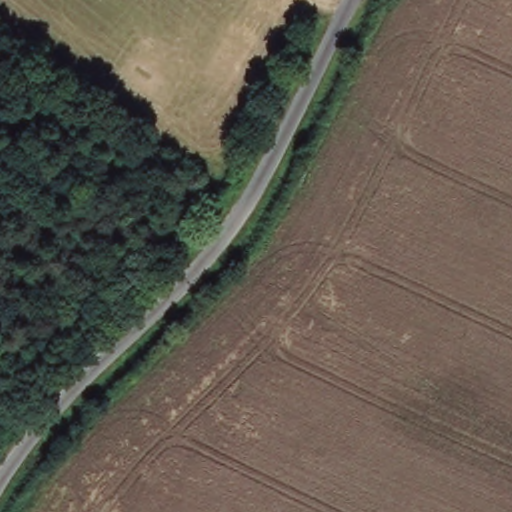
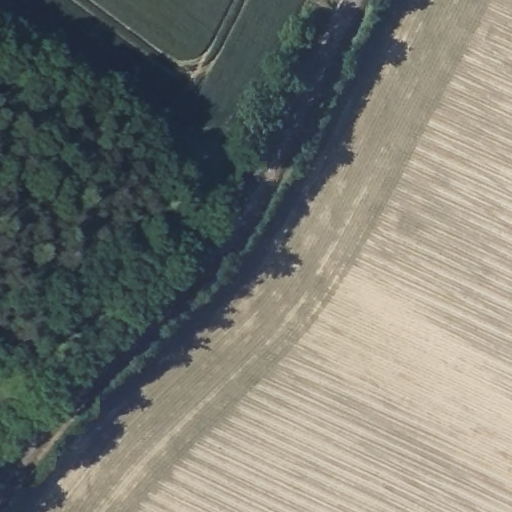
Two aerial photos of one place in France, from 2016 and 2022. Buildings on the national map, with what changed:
[]

